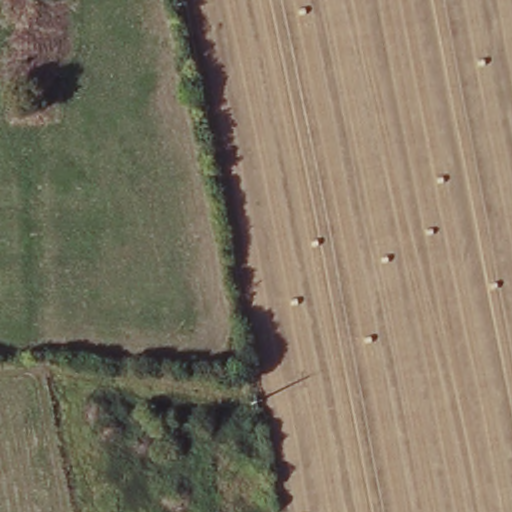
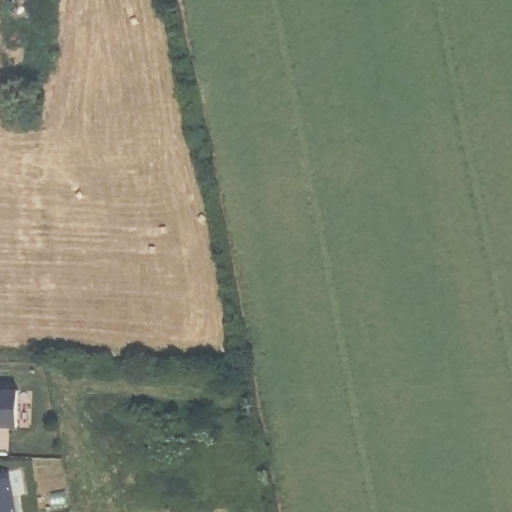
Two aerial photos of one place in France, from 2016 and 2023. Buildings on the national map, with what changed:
new [(19,394),(18,431),(0,431),(0,393),(19,394)]
new [(9,482),(15,512),(0,512),(0,483),(9,482)]

